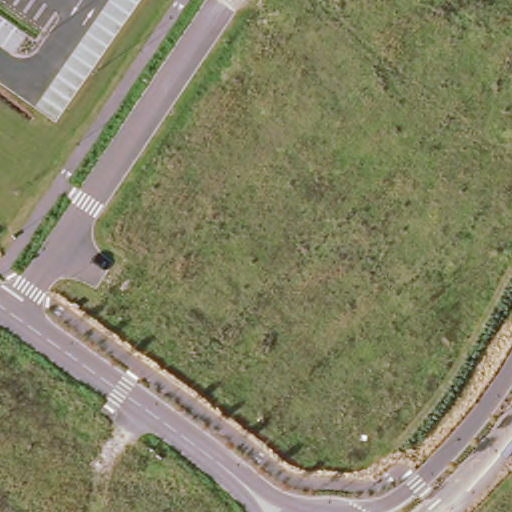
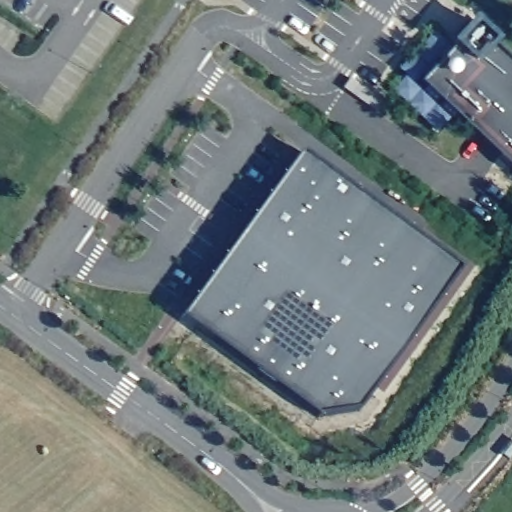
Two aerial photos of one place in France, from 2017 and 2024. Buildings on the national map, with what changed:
new [(512,60),(512,166),(421,81),(473,24),(512,60)]
new [(303,146),(462,266),(359,408),(317,412),(181,311),(303,146)]

